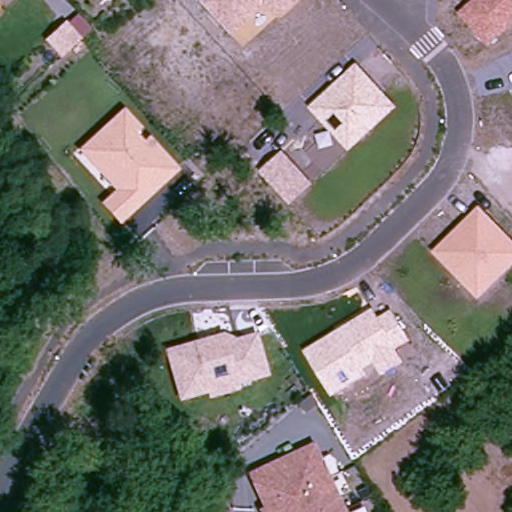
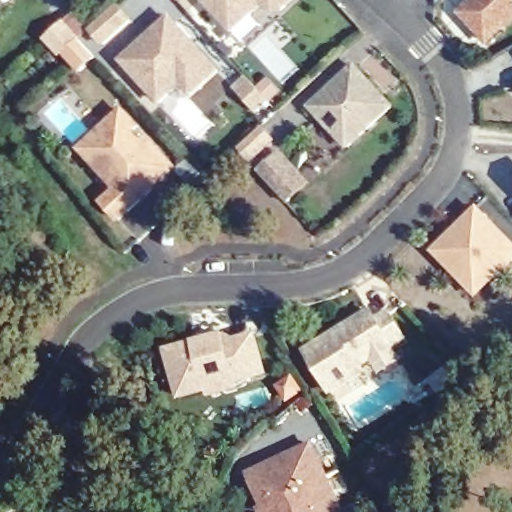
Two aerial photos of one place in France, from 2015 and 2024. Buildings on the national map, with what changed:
unchanged [(204,0),(301,0),(280,18),(265,4),(234,32),(203,1),(204,0)]
unchanged [(472,0),(512,0),(512,26),(489,47),(458,14),(472,0)]
unchanged [(45,39),(65,19),(68,22),(77,14),(92,29),(62,57),(45,39)]
new [(192,95),(182,84),(160,104),(123,63),(170,20),(207,61),(217,72),(192,95)]
unchanged [(397,107),(349,152),(308,107),(356,64),(397,107)]
unchanged [(120,225),(101,202),(115,190),(78,149),(124,107),(142,127),(136,133),(144,142),(150,136),(181,169),(120,225)]
unchanged [(313,185),(289,207),(258,172),(284,150),(313,185)]
unchanged [(512,266),(478,299),(432,252),(479,206),(512,241),(512,266)]
unchanged [(372,310),(378,318),(391,310),(410,341),(394,350),(403,362),(380,377),(373,364),(363,370),(367,376),(330,396),(303,350),(372,310)]
unchanged [(269,375),(239,383),(241,391),(209,400),(208,393),(179,402),(164,349),(224,332),(236,337),(258,331),(269,375)]
unchanged [(266,507),(251,473),(313,445),(344,512),(264,512),(262,508),(266,507)]

